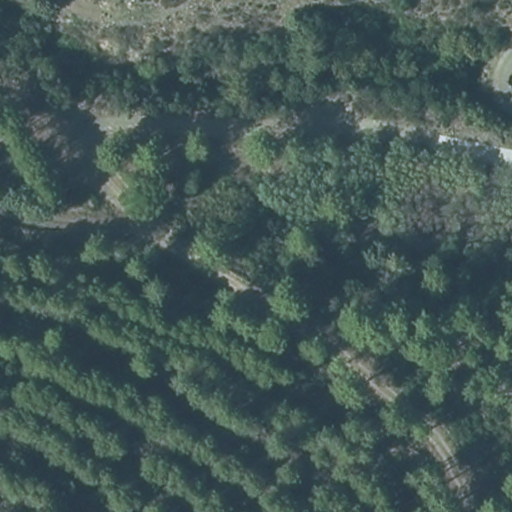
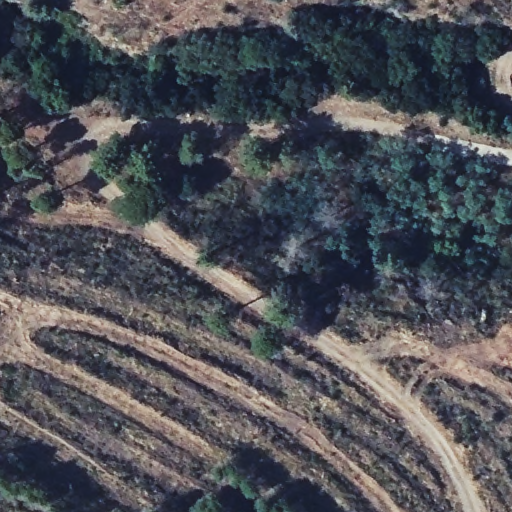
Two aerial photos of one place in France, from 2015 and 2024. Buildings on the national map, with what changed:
unchanged [(168,180),(148,180),(143,160),(168,160),(168,180)]

